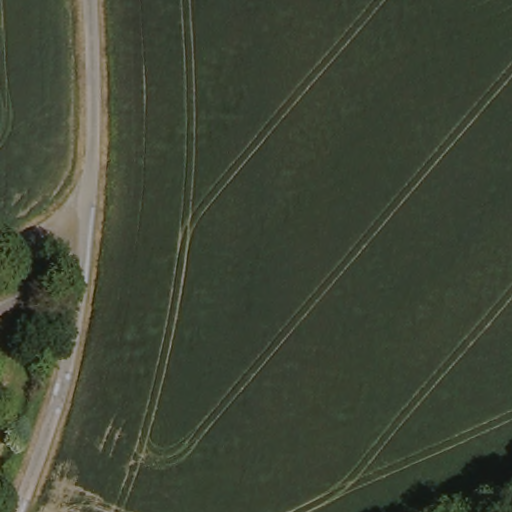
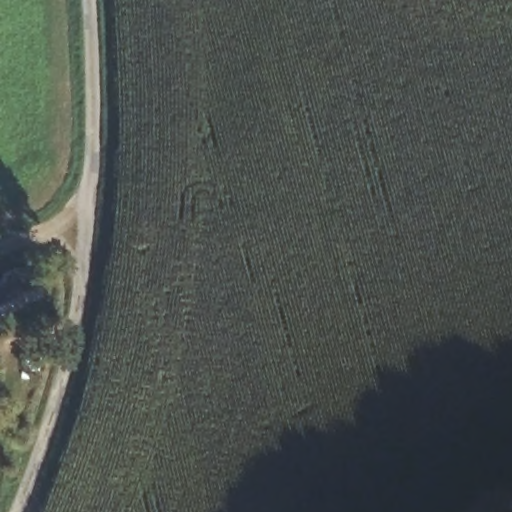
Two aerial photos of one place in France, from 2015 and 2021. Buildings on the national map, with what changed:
unchanged [(0,320),(0,286),(6,283),(21,309),(0,320)]

